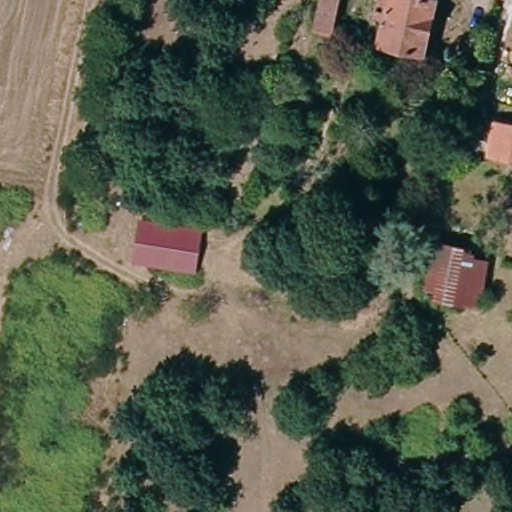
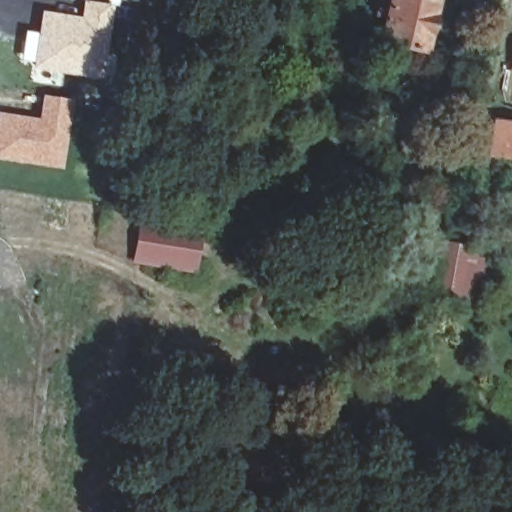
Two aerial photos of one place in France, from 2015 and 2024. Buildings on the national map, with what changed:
new [(24,29),(36,31),(40,9),(79,16),(82,0),(89,0),(107,3),(107,0),(119,0),(119,5),(115,4),(103,79),(31,70),(31,62),(19,59),(24,29)]
unchanged [(333,29),(313,24),(318,0),(339,0),(333,29)]
unchanged [(388,0),(436,0),(424,53),(378,43),(388,0)]
new [(42,94),(74,100),(64,169),(0,160),(0,111),(37,117),(42,94)]
unchanged [(492,121),(512,126),(512,161),(497,158),(484,155),(492,121)]
unchanged [(204,231),(196,274),(129,258),(134,220),(204,231)]
unchanged [(417,286),(429,228),(472,238),(471,246),(486,249),(477,299),(417,286)]
demolished [(512,261),(512,313),(478,307),(486,257),(512,261)]

